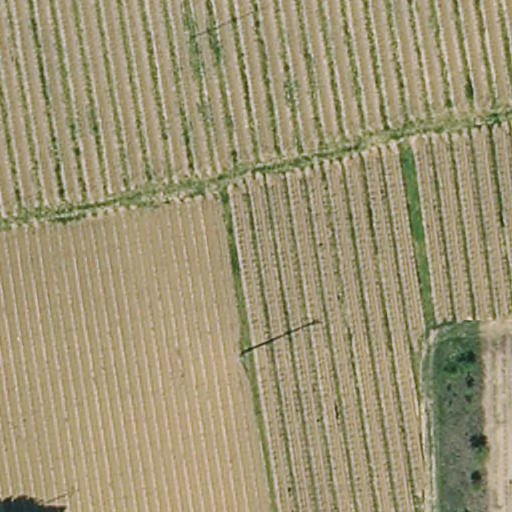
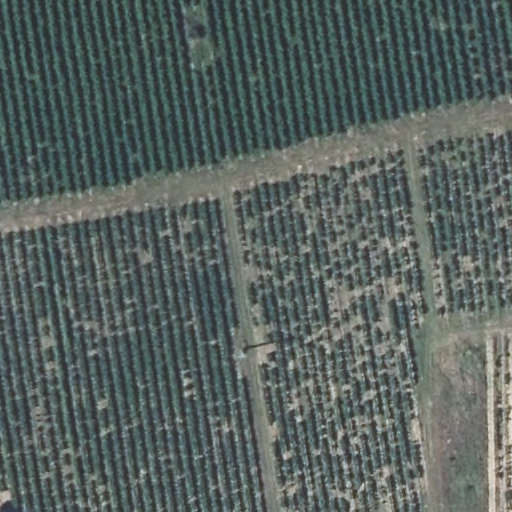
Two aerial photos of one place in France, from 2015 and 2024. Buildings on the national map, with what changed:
[]

